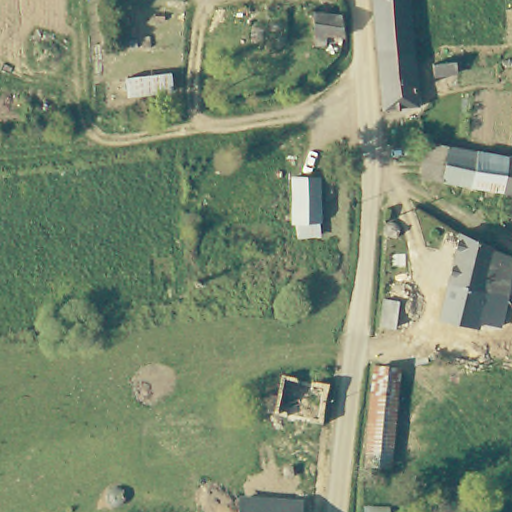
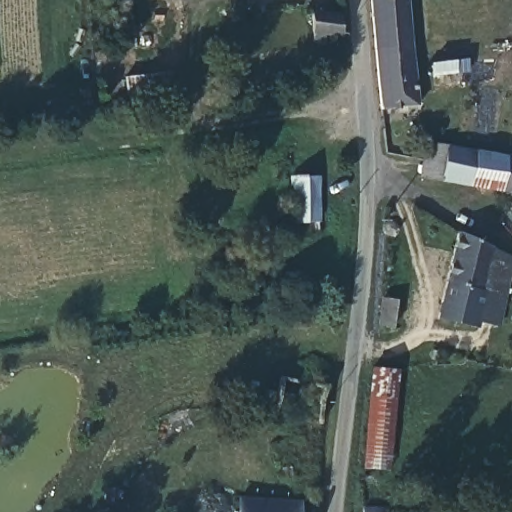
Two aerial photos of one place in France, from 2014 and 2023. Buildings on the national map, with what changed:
unchanged [(378,104),(370,0),(404,0),(415,102),(378,104)]
unchanged [(327,35),(327,46),(313,43),(312,12),(341,16),(342,36),(327,35)]
unchanged [(455,61),(457,73),(435,75),(433,63),(455,61)]
unchanged [(501,191),(442,181),(422,178),(427,142),(448,145),(506,155),(501,191)]
unchanged [(512,157),(512,193),(501,191),(506,155),(512,157)]
unchanged [(316,178),(316,222),(296,222),(294,178),(316,178)]
unchanged [(396,221),(399,223),(402,226),(402,230),(401,234),(398,237),(395,239),(391,239),(387,237),(385,235),(383,231),(384,227),(386,223),(390,221),(392,220),(396,221)]
unchanged [(505,294),(484,290),(475,333),(438,325),(460,228),(512,256),(512,264),(505,294)]
unchanged [(398,300),(396,327),(380,326),(382,299),(398,300)]
unchanged [(374,368),(398,370),(392,471),(365,468),(374,368)]
unchanged [(325,383),(317,420),(267,410),(276,373),(325,383)]
unchanged [(106,507),(107,503),(109,500),(112,498),(114,497),(117,497),(121,498),(124,501),(126,505),(126,509),(124,512),(107,512),(107,511),(106,507)]
unchanged [(300,512),(238,512),(239,499),(301,503),(300,512)]
unchanged [(365,512),(365,507),(390,506),(390,512),(365,512)]

